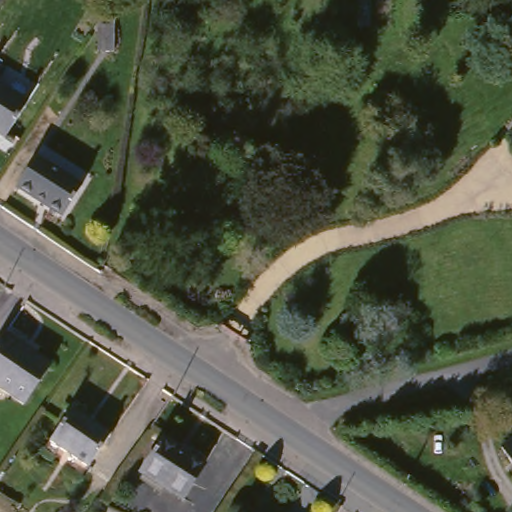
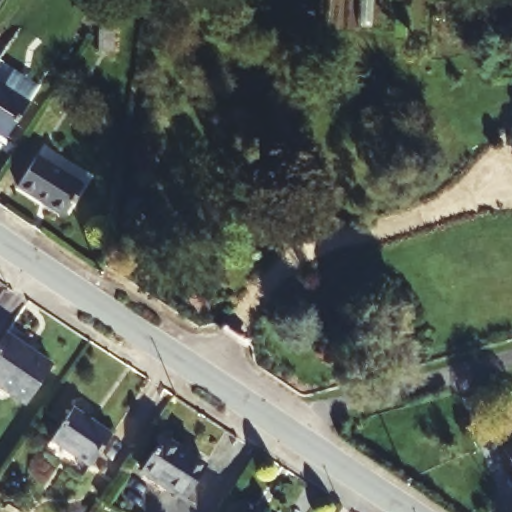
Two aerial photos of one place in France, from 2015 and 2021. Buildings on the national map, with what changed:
unchanged [(100,37),(116,37),(116,57),(100,57),(100,37)]
unchanged [(6,145),(0,141),(0,90),(30,109),(6,145)]
unchanged [(84,192),(64,222),(17,192),(37,162),(84,192)]
unchanged [(52,371),(25,411),(0,394),(0,347),(5,340),(52,371)]
unchanged [(111,435),(83,477),(44,451),(72,408),(111,435)]
unchanged [(158,438),(201,467),(179,501),(135,473),(158,438)]
unchanged [(512,445),(512,468),(501,452),(512,445)]

